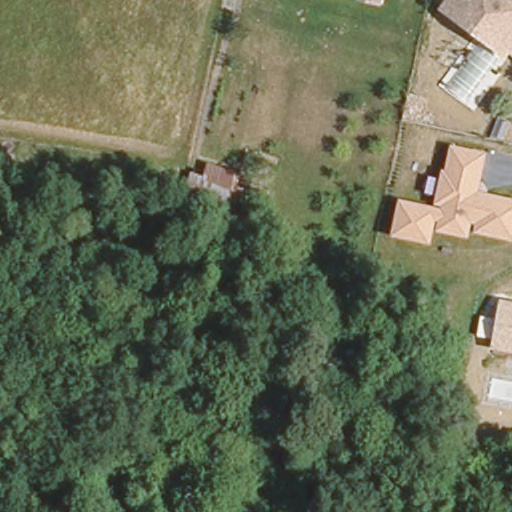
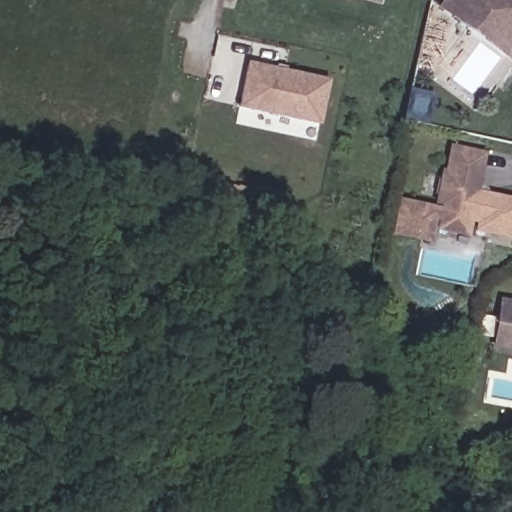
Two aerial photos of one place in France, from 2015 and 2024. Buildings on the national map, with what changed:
unchanged [(512,37),(480,14),(469,28),(447,13),(438,7),(443,0),(512,0),(512,37)]
unchanged [(512,40),(512,58),(504,53),(512,40)]
new [(252,62),(332,77),(323,120),(244,105),(252,62)]
new [(415,89),(435,93),(430,119),(410,115),(415,89)]
unchanged [(446,201),(437,200),(443,172),(447,173),(453,148),(485,154),(477,189),(512,197),(512,241),(476,233),(478,222),(470,220),(467,235),(439,230),(442,218),(434,217),(428,241),(393,234),(401,200),(445,209),(446,201)]
unchanged [(241,167),(232,202),(194,192),(204,156),(241,167)]
unchanged [(501,295),(512,298),(512,352),(492,348),(501,295)]

